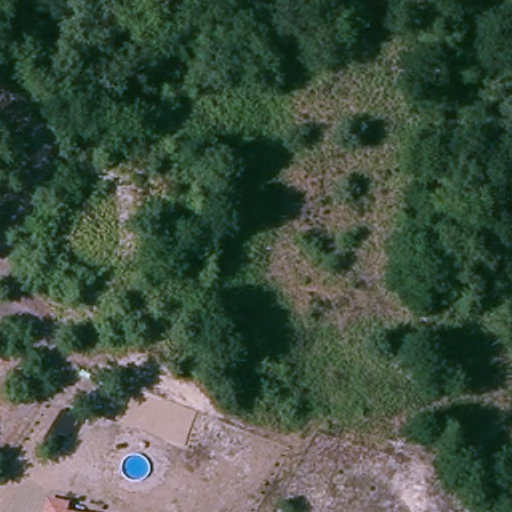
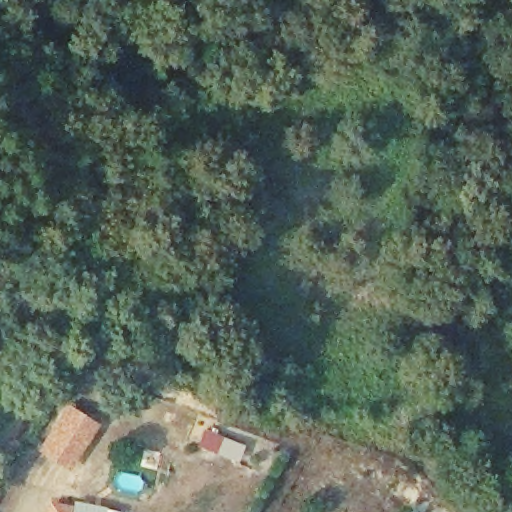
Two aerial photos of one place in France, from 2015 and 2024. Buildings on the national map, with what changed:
new [(67,402),(101,424),(70,471),(37,450),(67,402)]
unchanged [(46,508),(62,511),(62,512),(45,512),(46,508)]

